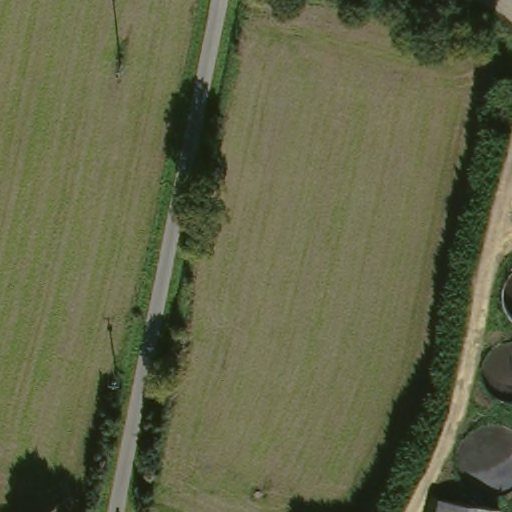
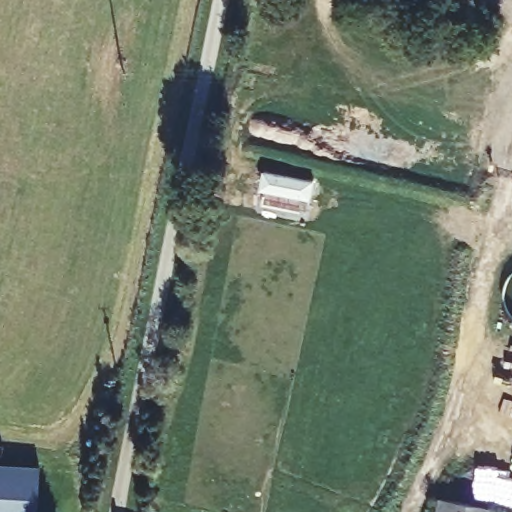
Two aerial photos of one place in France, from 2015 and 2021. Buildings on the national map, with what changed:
new [(36,512),(0,512),(0,462),(39,465),(36,512)]
unchanged [(494,512),(433,512),(437,492),(495,505),(494,512)]

